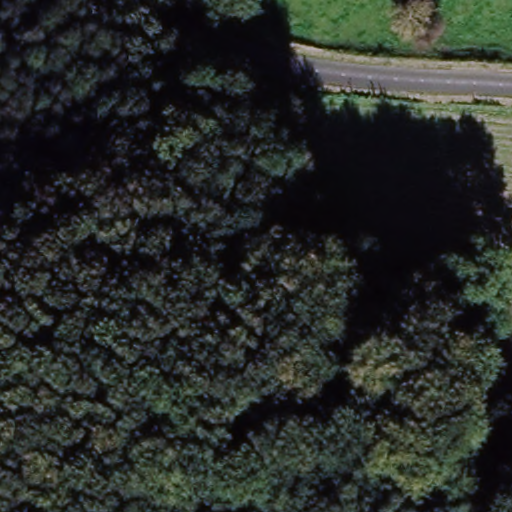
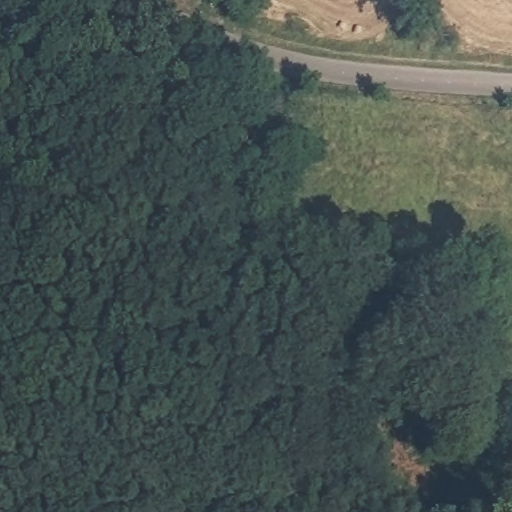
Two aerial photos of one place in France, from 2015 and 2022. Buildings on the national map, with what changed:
[]

